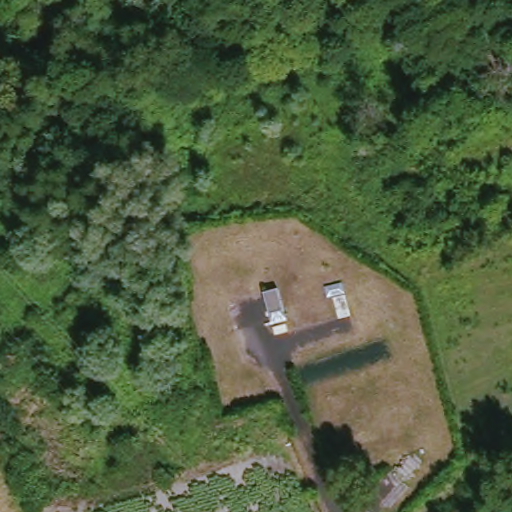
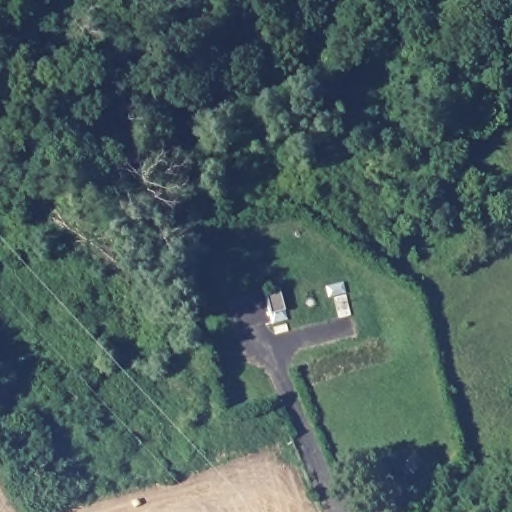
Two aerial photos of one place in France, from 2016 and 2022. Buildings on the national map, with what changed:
unchanged [(287,321),(272,325),(263,291),(277,287),(287,321)]

